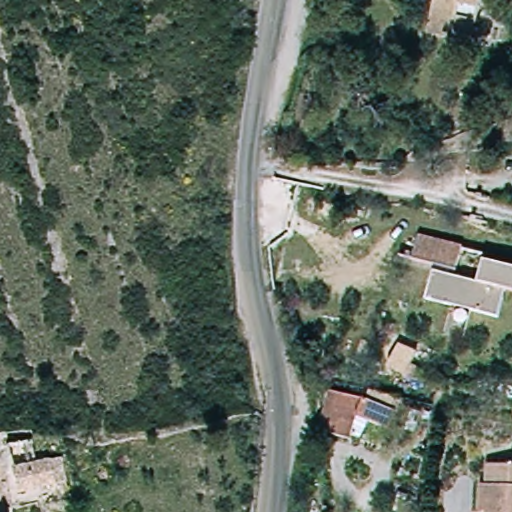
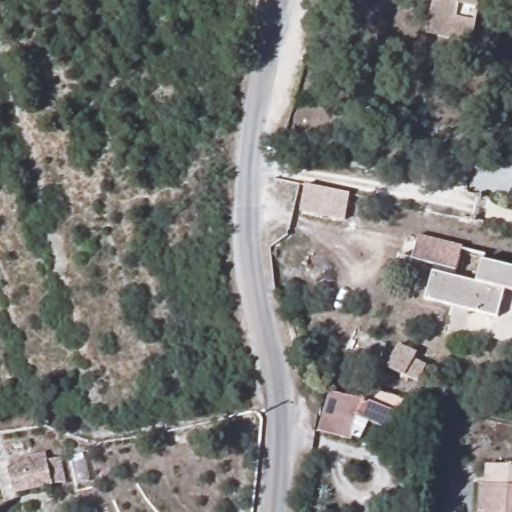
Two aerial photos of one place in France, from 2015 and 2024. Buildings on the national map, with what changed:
unchanged [(435,1),(429,0),(482,0),(472,45),(428,37),(435,1)]
new [(350,197),(344,225),(300,215),(306,188),(350,197)]
unchanged [(512,270),(512,294),(503,291),(495,320),(423,300),(432,266),(410,260),(416,236),(459,248),(459,250),(483,256),(482,262),(512,270)]
unchanged [(421,380),(405,375),(407,372),(391,366),(397,346),(414,351),(409,365),(425,370),(421,380)]
unchanged [(398,412),(393,411),(386,430),(362,421),(353,442),(319,430),(335,388),(364,398),(367,388),(403,397),(398,412)]
unchanged [(35,463),(56,458),(61,483),(14,492),(3,446),(28,441),(35,463)]
unchanged [(477,512),(479,489),(483,490),(484,469),(512,471),(512,512),(477,512)]

